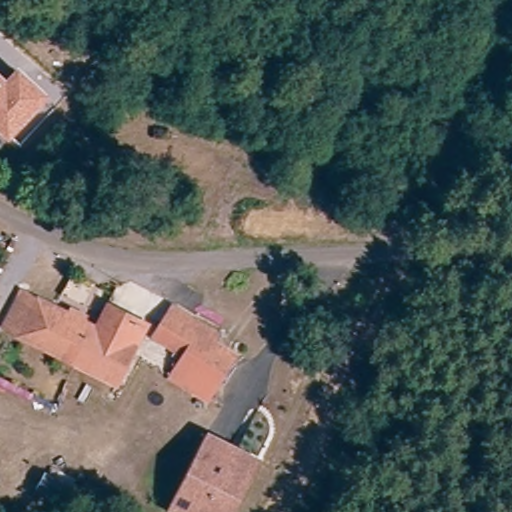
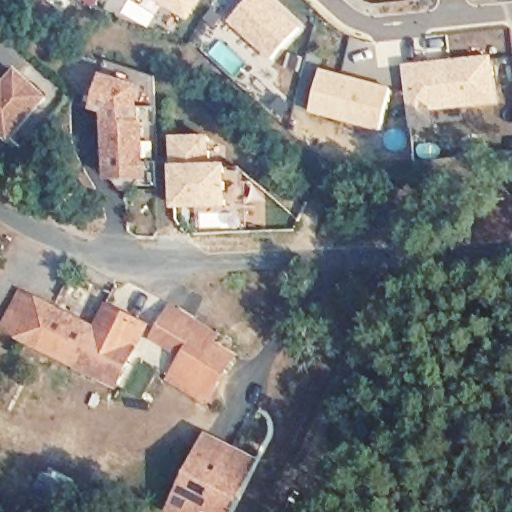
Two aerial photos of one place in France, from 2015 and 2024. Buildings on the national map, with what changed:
new [(188,14),(163,0),(197,0),(188,14)]
new [(300,27),(272,57),(230,21),(250,0),(270,0),(300,27)]
new [(493,55),(498,103),(433,111),(435,125),(411,127),(404,63),(493,55)]
unchanged [(50,96),(9,142),(0,134),(0,73),(6,78),(18,66),(50,96)]
new [(392,86),(381,131),(310,112),(320,69),(392,86)]
new [(141,84),(144,123),(149,122),(150,179),(105,181),(105,114),(92,110),(103,74),(141,84)]
new [(232,209),(175,211),(174,166),(174,137),(215,135),(215,165),(231,164),(232,209)]
unchanged [(71,310),(80,315),(78,321),(89,328),(103,299),(115,306),(135,317),(149,326),(134,354),(122,379),(112,388),(1,330),(21,288),(68,316),(71,310)]
unchanged [(161,380),(168,370),(179,357),(154,337),(170,319),(176,312),(222,350),(216,358),(231,371),(200,410),(161,380)]
unchanged [(177,494),(210,440),(236,453),(254,464),(247,477),(227,512),(208,512),(202,509),(201,512),(171,512),(169,511),(177,494)]

